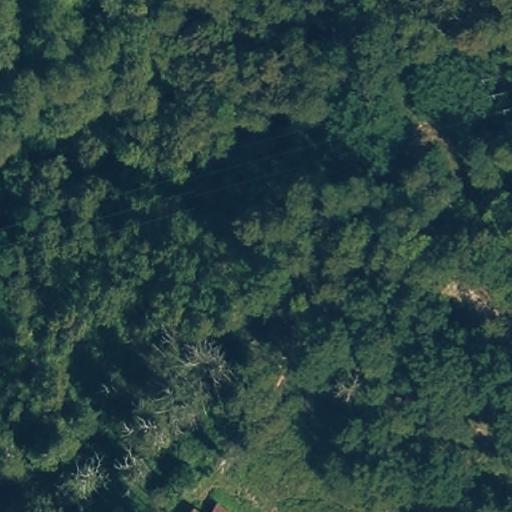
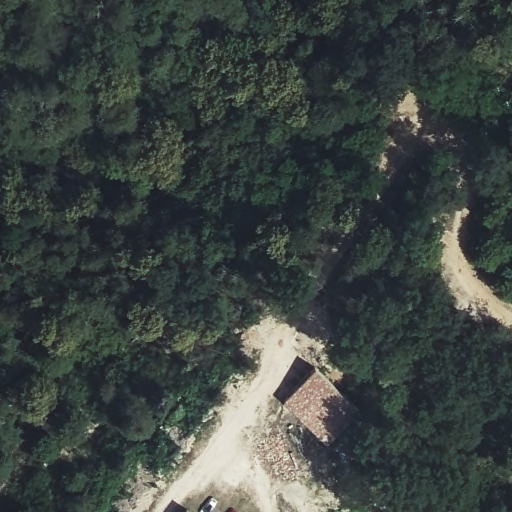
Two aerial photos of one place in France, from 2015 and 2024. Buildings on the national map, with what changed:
new [(315,368),(358,410),(327,444),(282,402),(315,368)]
new [(186,504),(199,512),(181,512),(186,504)]

